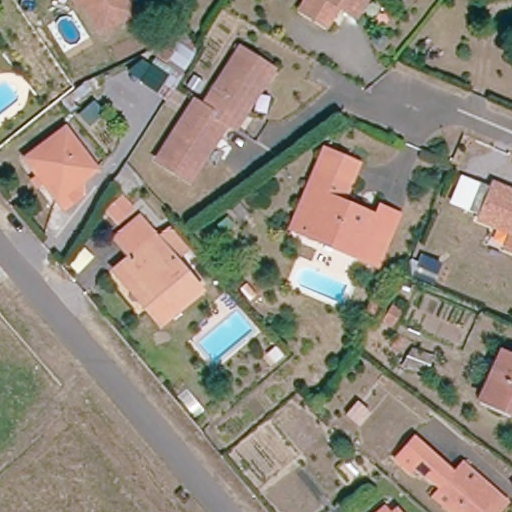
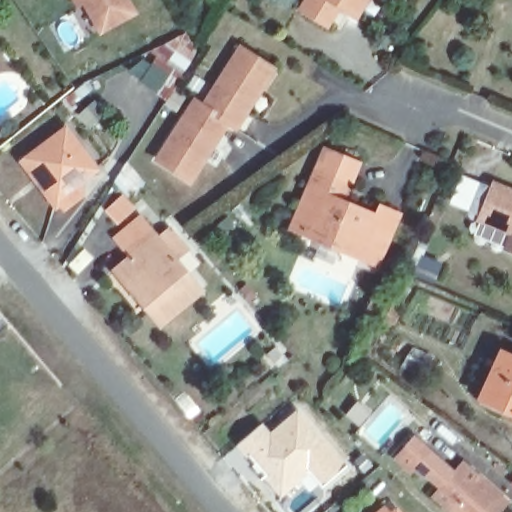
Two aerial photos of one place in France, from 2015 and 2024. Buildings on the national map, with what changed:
unchanged [(107,28),(92,0),(132,0),(137,10),(107,28)]
unchanged [(340,6),(328,26),(304,11),(311,0),(368,0),(358,16),(340,6)]
unchanged [(270,70),(232,128),(224,123),(186,181),(154,160),(191,102),(200,108),(237,49),(270,70)]
unchanged [(161,58),(179,70),(161,97),(144,86),(161,58)]
unchanged [(64,129),(91,169),(56,196),(27,156),(64,129)]
unchanged [(296,234),(282,228),(299,187),(305,173),(315,149),(349,163),(339,187),(333,202),(368,217),(372,208),(390,215),(380,239),(370,265),(332,250),(312,241),(296,234)]
unchanged [(502,254),(508,238),(475,225),(476,220),(465,215),(472,200),(476,189),(488,193),(490,189),(512,199),(512,258),(502,254)]
unchanged [(111,269),(125,256),(110,237),(135,218),(197,291),(158,324),(140,303),(126,288),(111,269)]
unchanged [(436,282),(417,274),(425,255),(445,263),(436,282)]
unchanged [(380,298),(387,302),(381,313),(373,308),(380,298)]
unchanged [(501,357),(512,361),(512,411),(483,398),(501,357)]
new [(262,420),(270,429),(299,406),(347,463),(319,487),(309,474),(278,498),(234,445),(262,420)]
unchanged [(498,512),(443,512),(439,496),(403,459),(400,462),(396,465),(382,450),(402,431),(416,445),(447,477),(456,468),(490,503),(498,512)]
unchanged [(384,509),(386,512),(381,512),(384,509)]

